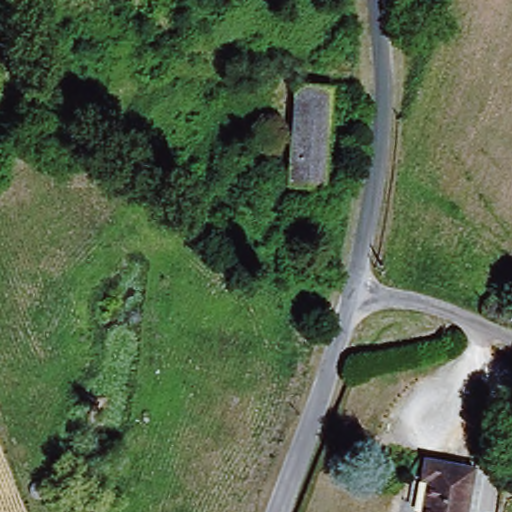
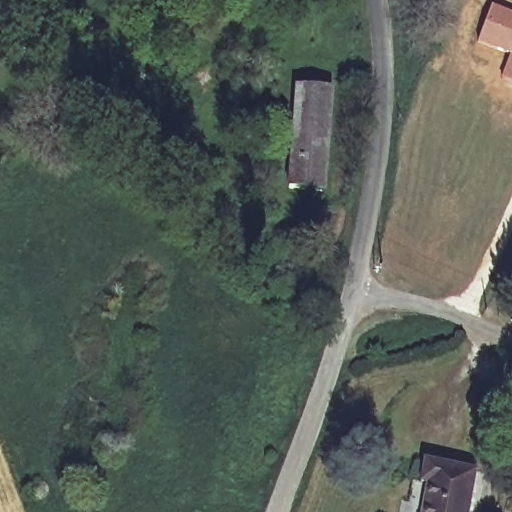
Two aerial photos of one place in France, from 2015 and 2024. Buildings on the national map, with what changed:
new [(491,5),(512,13),(512,82),(500,78),(509,55),(477,42),(491,5)]
unchanged [(286,194),(292,88),(327,89),(320,194),(286,194)]
unchanged [(474,471),(465,512),(418,512),(430,461),(474,471)]
unchanged [(34,487),(37,482),(41,480),(46,478),(50,480),(55,483),(58,489),(58,496),(55,501),(51,503),(46,505),(42,504),(37,500),(32,491),(34,487)]

